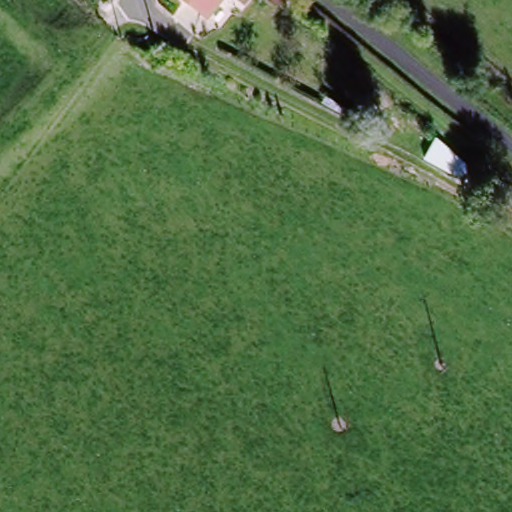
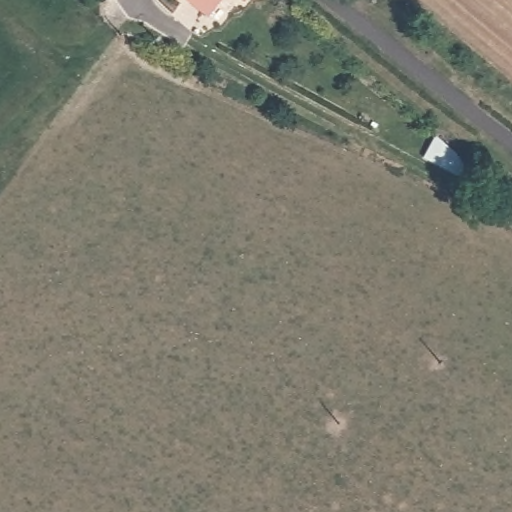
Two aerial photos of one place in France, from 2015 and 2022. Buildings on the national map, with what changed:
unchanged [(202,18),(193,12),(180,0),(215,0),(202,18)]

